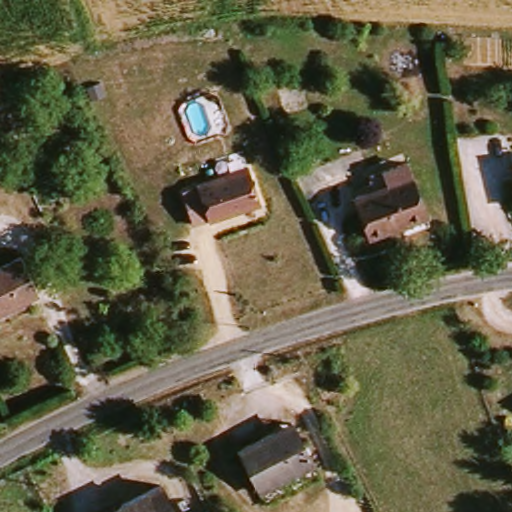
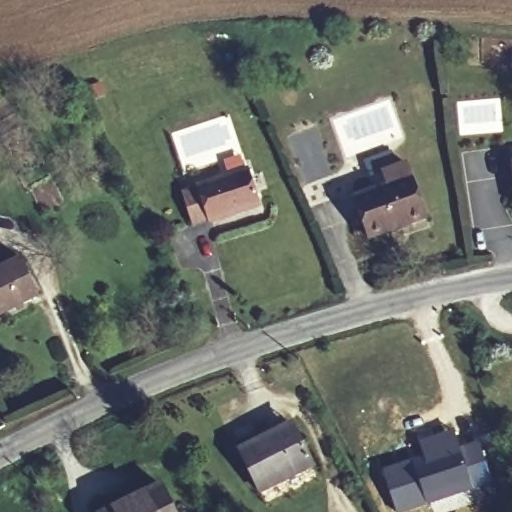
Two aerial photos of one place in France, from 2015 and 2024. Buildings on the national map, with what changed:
unchanged [(251,164),(265,206),(210,225),(208,220),(194,225),(185,192),(198,188),(197,182),(251,164)]
unchanged [(359,202),(377,194),(370,181),(408,168),(430,223),(372,240),(359,202)]
unchanged [(40,299),(0,318),(0,272),(22,261),(40,299)]
unchanged [(260,492),(240,449),(288,426),(308,469),(260,492)]
new [(478,442),(492,483),(405,512),(398,512),(384,469),(424,456),(420,443),(453,430),(461,448),(478,442)]
unchanged [(171,512),(94,512),(153,479),(171,512)]

